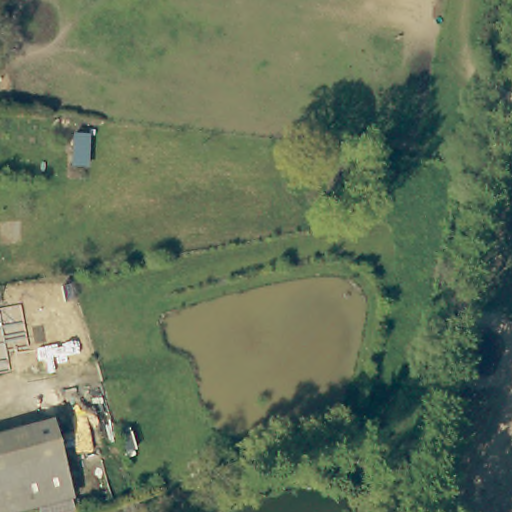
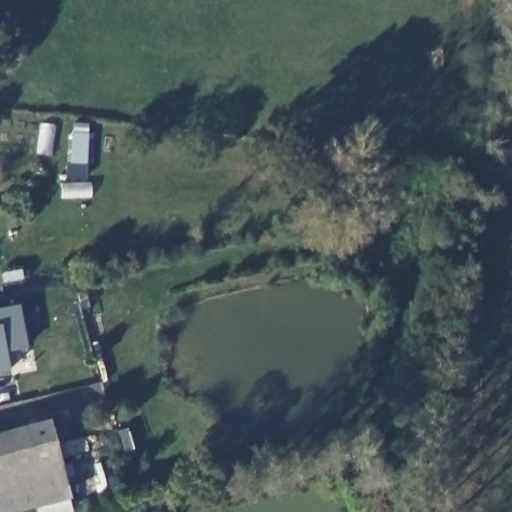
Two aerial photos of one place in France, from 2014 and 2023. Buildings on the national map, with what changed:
unchanged [(33,141),(30,168),(17,168),(19,141),(33,141)]
new [(6,351),(10,371),(0,373),(0,308),(19,305),(27,348),(6,351)]
unchanged [(61,459),(0,477),(0,436),(50,422),(61,459)]
unchanged [(11,512),(0,512),(0,477),(61,459),(70,496),(11,512)]

